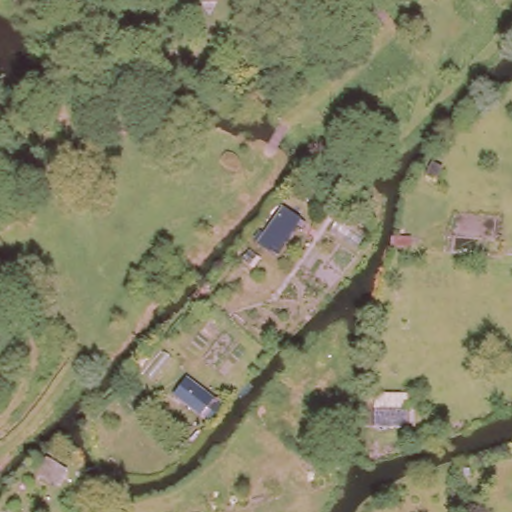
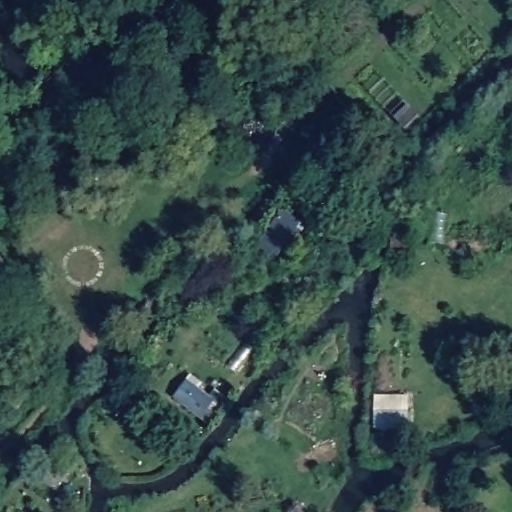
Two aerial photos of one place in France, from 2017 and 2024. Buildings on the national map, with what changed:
unchanged [(281,249),(263,237),(278,214),(297,225),(281,249)]
unchanged [(173,389),(185,376),(188,379),(191,377),(202,387),(198,393),(210,403),(201,413),(173,389)]
unchanged [(206,415),(214,406),(233,423),(225,431),(206,415)]

